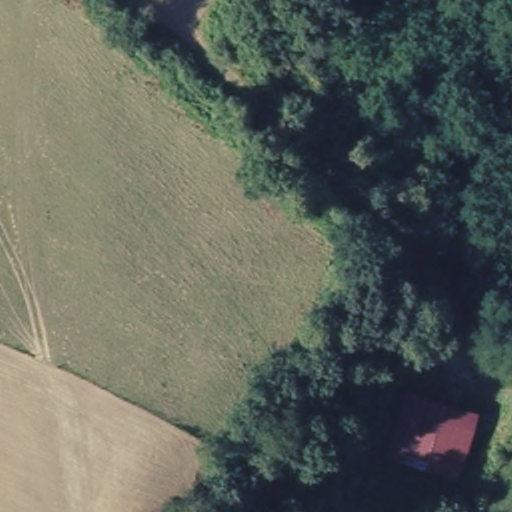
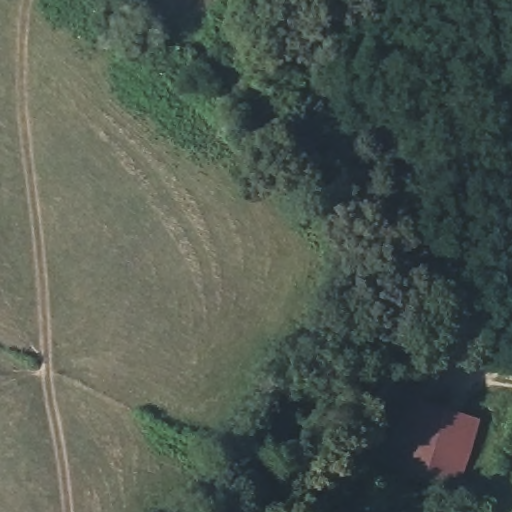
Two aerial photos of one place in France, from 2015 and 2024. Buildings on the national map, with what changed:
unchanged [(381,472),(406,395),(477,418),(460,493),(381,472)]

